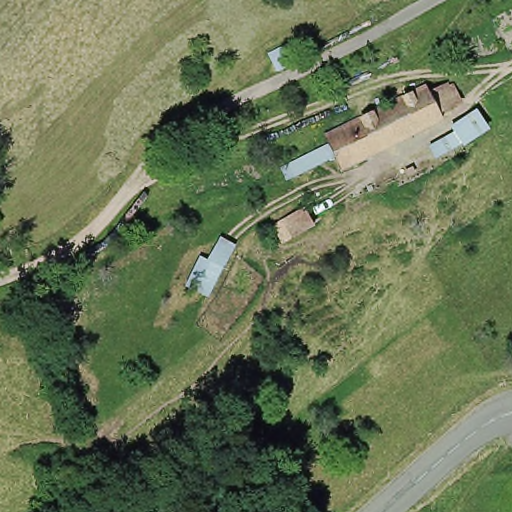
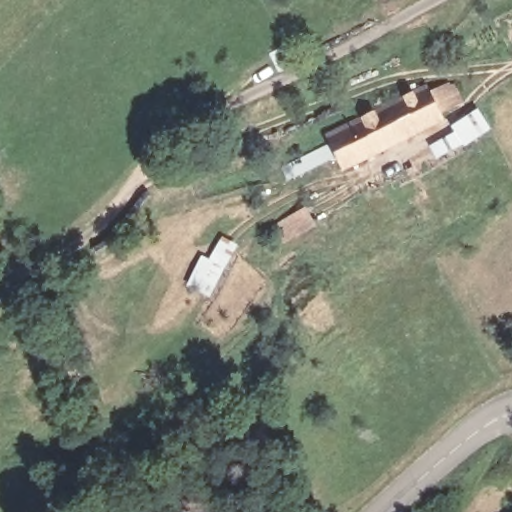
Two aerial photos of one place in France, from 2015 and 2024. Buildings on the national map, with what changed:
unchanged [(434,89),(449,82),(460,102),(445,111),(448,116),(387,147),(370,116),(432,86),(434,89)]
unchanged [(430,146),(457,130),(450,122),(477,105),(493,132),(439,162),(430,146)]
unchanged [(346,169),(330,137),(370,116),(387,147),(346,169)]

